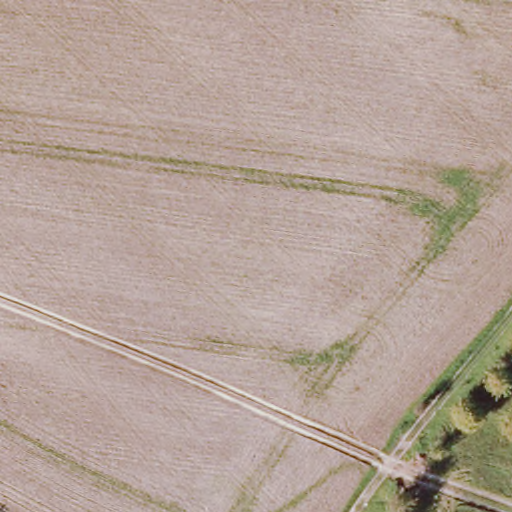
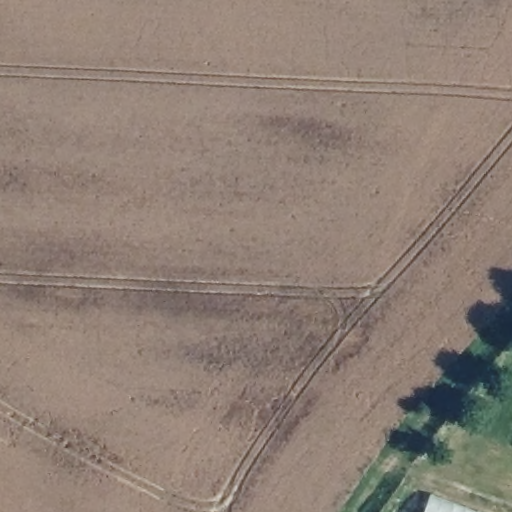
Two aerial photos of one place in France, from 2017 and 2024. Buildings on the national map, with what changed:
new [(487,512),(423,512),(430,491),(487,512)]

